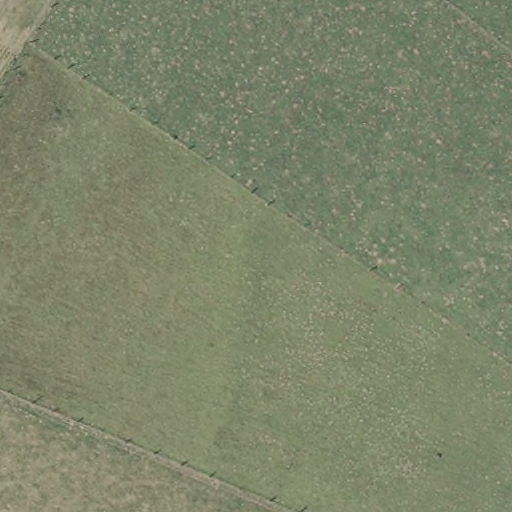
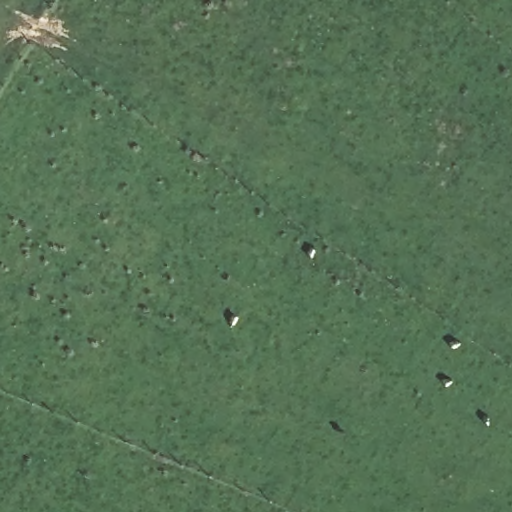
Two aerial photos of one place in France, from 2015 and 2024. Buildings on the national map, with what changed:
[]

